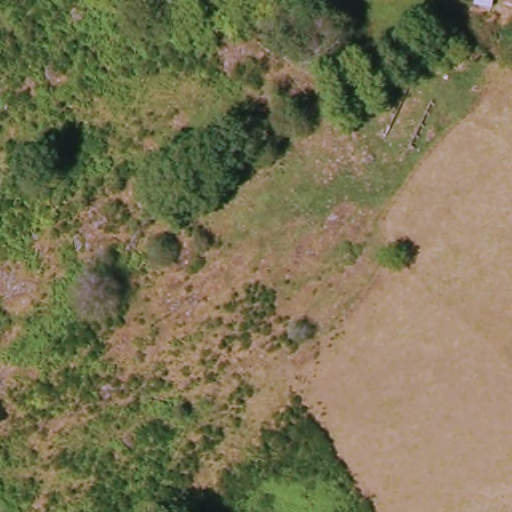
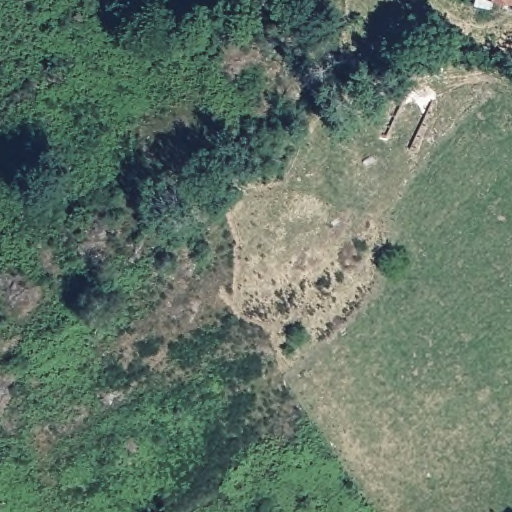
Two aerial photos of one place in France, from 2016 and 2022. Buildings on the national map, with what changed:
unchanged [(473,0),(512,0),(512,7),(473,2),(473,0)]

